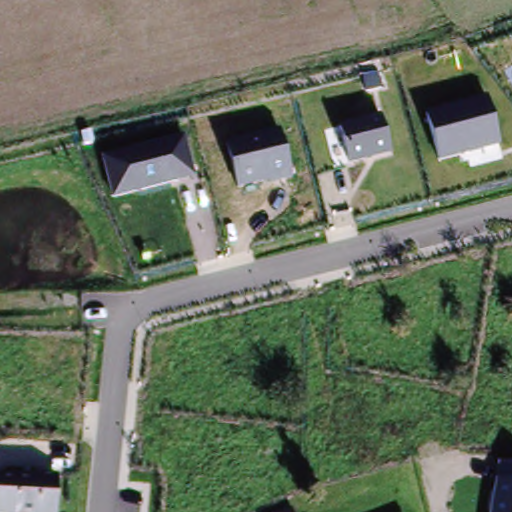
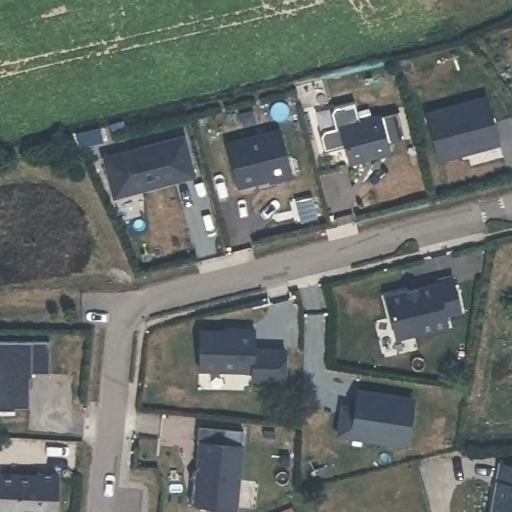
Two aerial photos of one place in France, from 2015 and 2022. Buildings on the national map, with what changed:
unchanged [(427,113),(490,96),(500,144),(438,160),(427,113)]
unchanged [(340,125),(380,114),(390,151),(350,163),(340,125)]
unchanged [(226,143),(280,129),(293,177),(270,184),(268,180),(237,187),(226,143)]
unchanged [(100,151),(182,130),(194,175),(111,197),(100,151)]
new [(387,296),(435,283),(435,280),(452,276),(460,310),(443,315),(446,325),(397,337),(387,296)]
new [(223,333),(223,331),(232,331),(252,332),(252,352),(283,352),(282,382),(252,382),(252,374),(197,372),(199,332),(232,334),(223,333)]
new [(48,375),(30,374),(30,379),(28,378),(27,409),(12,408),(12,411),(0,410),(0,341),(50,343),(48,375)]
new [(398,403),(413,405),(407,447),(337,437),(341,414),(342,407),(349,408),(355,409),(358,391),(398,398),(398,403)]
new [(194,479),(200,466),(202,442),(198,442),(200,427),(227,430),(225,445),(244,447),(237,511),(195,506),(197,492),(198,481),(194,479)]
unchanged [(512,462),(512,512),(490,512),(498,460),(512,462)]
unchanged [(37,481),(38,475),(58,477),(57,512),(0,512),(0,488),(0,480),(37,481)]
unchanged [(292,512),(284,512),(291,509),(292,512)]

